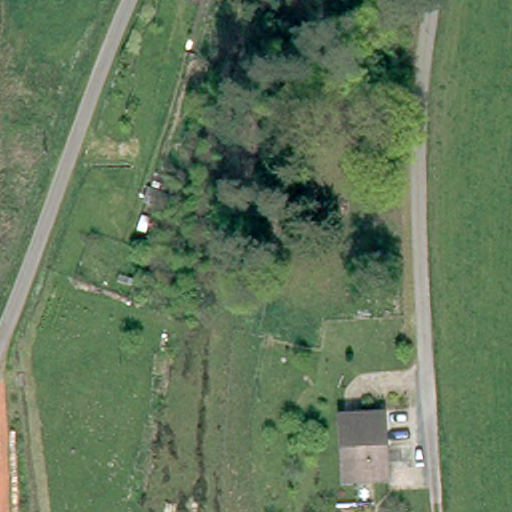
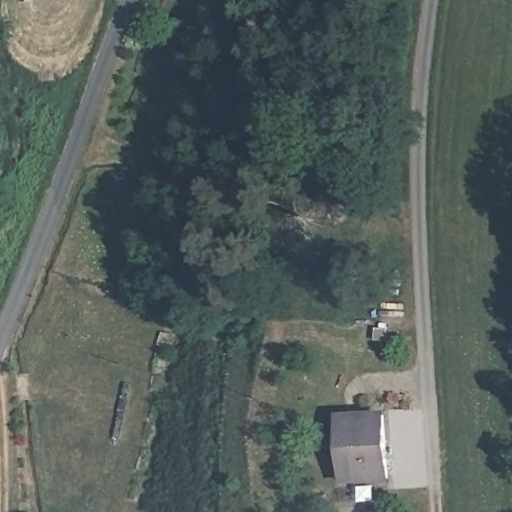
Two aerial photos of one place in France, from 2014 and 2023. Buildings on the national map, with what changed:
unchanged [(391,412),(395,478),(346,479),(344,414),(391,412)]

